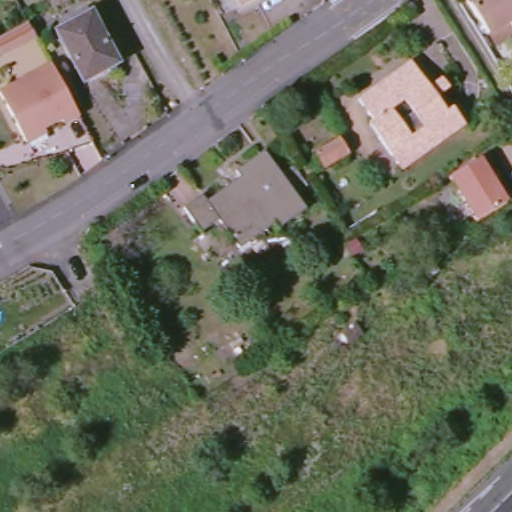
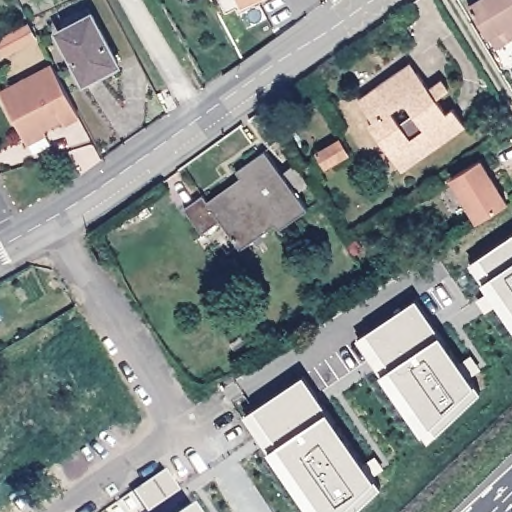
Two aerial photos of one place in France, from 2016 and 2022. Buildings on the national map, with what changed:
unchanged [(242,5),(240,0),(251,0),(242,5)]
unchanged [(470,0),(512,0),(512,33),(496,44),(470,0)]
unchanged [(91,15),(118,65),(83,84),(55,34),(91,15)]
unchanged [(29,21),(31,25),(33,30),(36,35),(4,53),(0,46),(0,37),(29,21)]
unchanged [(417,55),(435,81),(447,74),(455,86),(444,94),(452,106),(459,101),(472,120),(409,165),(376,118),(381,114),(365,92),(417,55)]
unchanged [(64,123),(62,119),(49,126),(48,124),(43,126),(46,133),(28,143),(0,92),(52,65),(56,72),(79,115),(64,123)]
unchanged [(336,135),(347,153),(324,167),(313,149),(336,135)]
unchanged [(254,169),(246,159),(260,149),(278,174),(291,165),(303,184),(291,191),(302,208),(271,229),(268,224),(233,247),(213,219),(194,231),(178,205),(198,192),(204,202),(254,169)]
unchanged [(479,221),(452,179),(461,173),(481,160),(508,203),(479,221)]
new [(512,312),(478,261),(512,238),(512,312)]
new [(512,330),(469,266),(478,261),(512,312),(512,330)]
new [(416,302),(487,407),(436,441),(365,336),(416,302)]
new [(427,448),(356,342),(365,336),(436,441),(427,448)]
new [(468,356),(476,367),(464,375),(457,363),(468,356)]
new [(318,396),(260,435),(245,413),(304,375),(318,396)]
new [(297,431),(292,425),(324,405),(379,488),(354,512),(324,512),(278,443),(297,431)]
new [(161,503),(148,512),(141,512),(129,495),(148,482),(161,503)]
new [(189,512),(180,512),(186,508),(189,512)]

